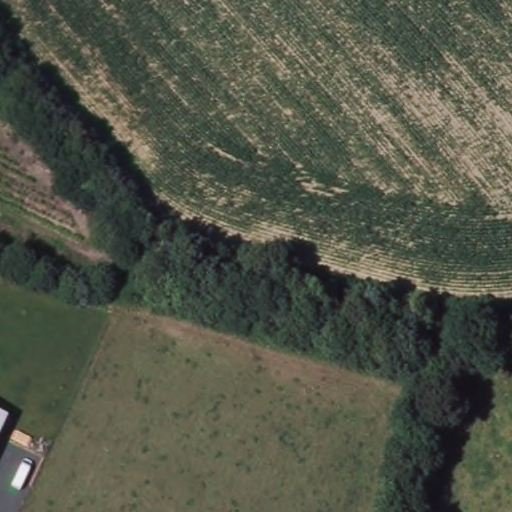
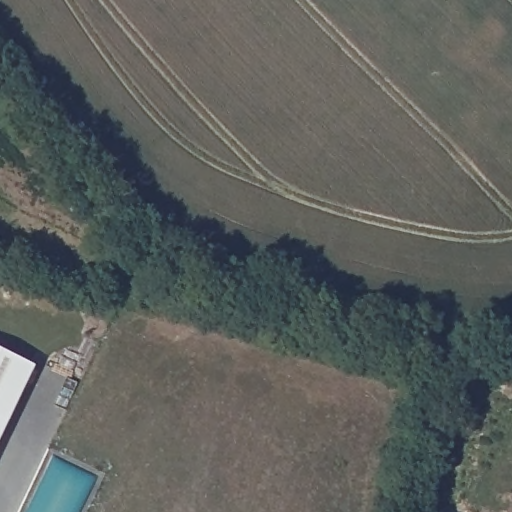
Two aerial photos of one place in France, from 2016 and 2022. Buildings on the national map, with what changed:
new [(6,420),(0,418),(0,351),(30,365),(6,420)]
unchanged [(6,420),(0,434),(0,418),(6,420)]

